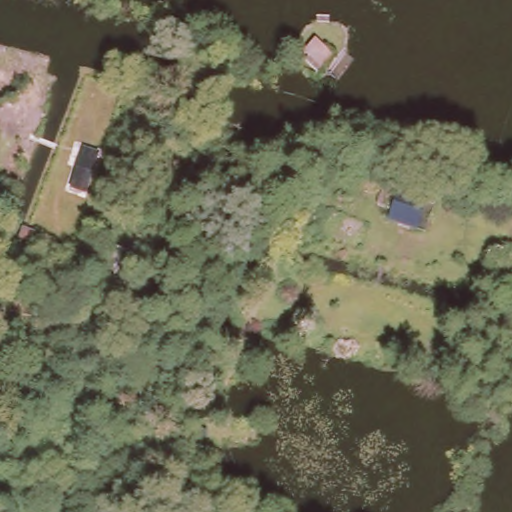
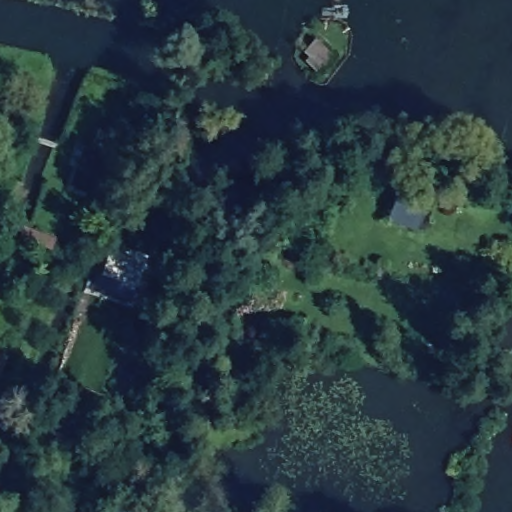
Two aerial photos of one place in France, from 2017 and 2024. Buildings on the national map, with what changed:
unchanged [(312,39),(329,55),(317,66),(301,51),(312,39)]
unchanged [(97,150),(85,189),(72,184),(82,146),(97,150)]
unchanged [(396,187),(425,196),(417,227),(387,220),(396,187)]
unchanged [(106,279),(116,250),(150,261),(138,291),(106,279)]
unchanged [(1,356),(0,359),(0,355),(1,356)]

